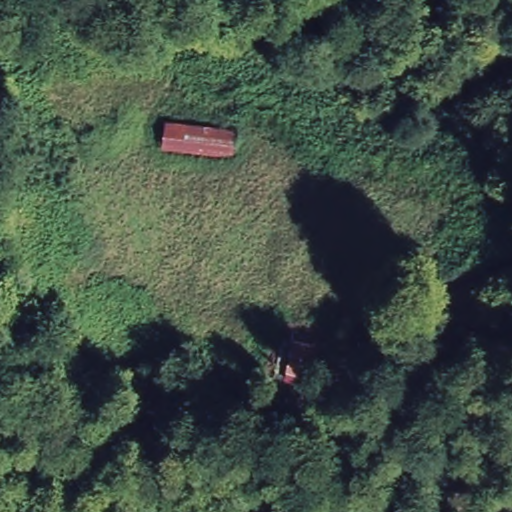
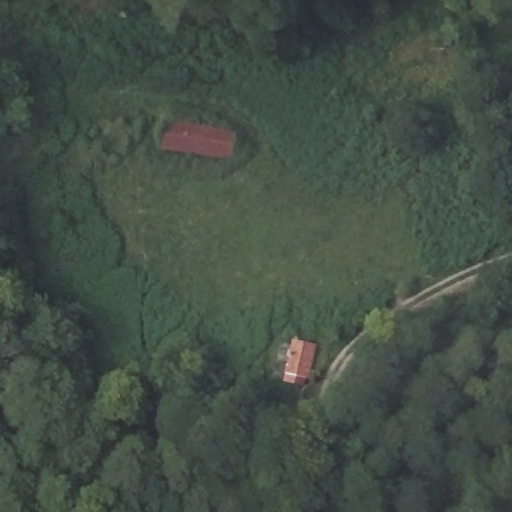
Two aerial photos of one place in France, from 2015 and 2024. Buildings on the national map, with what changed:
unchanged [(231,156),(162,145),(166,118),(235,129),(231,156)]
unchanged [(412,266),(390,275),(384,259),(406,252),(412,266)]

